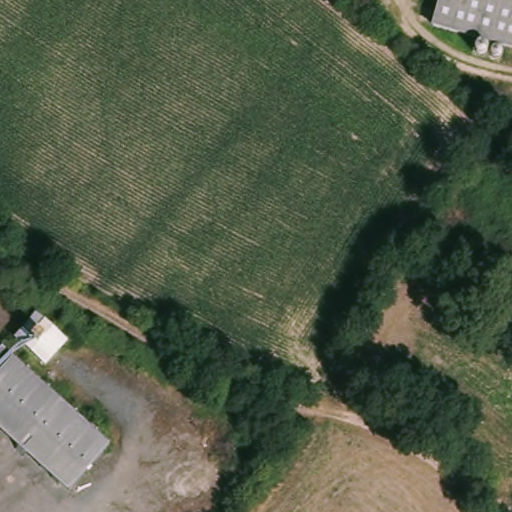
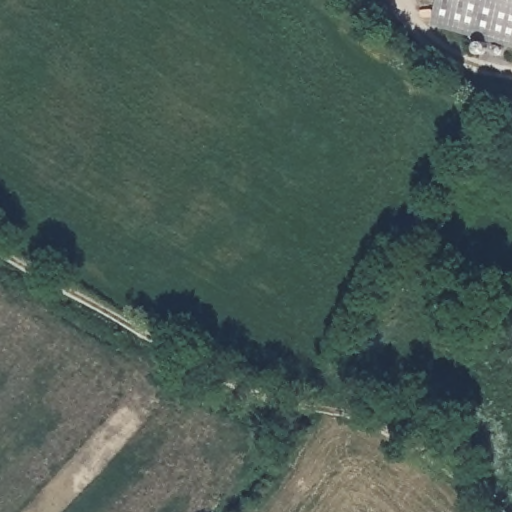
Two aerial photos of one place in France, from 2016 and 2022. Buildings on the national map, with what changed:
unchanged [(437,0),(512,0),(512,47),(430,25),(437,0)]
demolished [(18,338),(37,314),(71,340),(51,364),(18,338)]
demolished [(5,350),(111,447),(72,491),(0,426),(0,357),(5,350)]

